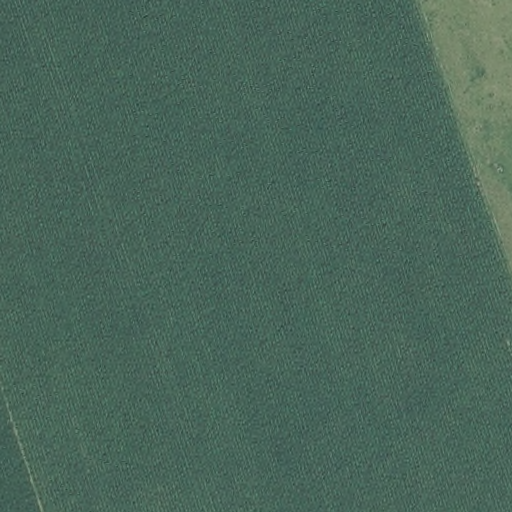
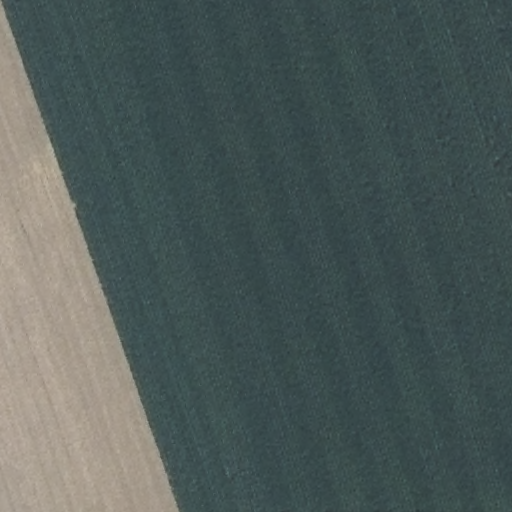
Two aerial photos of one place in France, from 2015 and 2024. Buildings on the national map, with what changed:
[]

